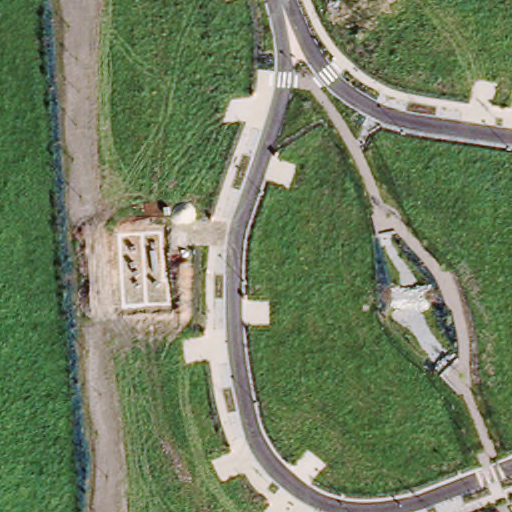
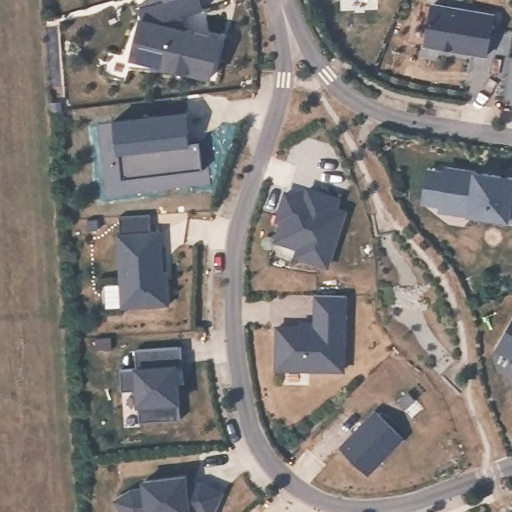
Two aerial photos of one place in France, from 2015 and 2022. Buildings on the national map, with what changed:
new [(143,16),(140,6),(155,2),(154,0),(202,0),(204,6),(170,16),(169,22),(222,36),(212,75),(131,54),(141,16),(143,16)]
new [(432,2),(480,10),(479,17),(493,20),(487,52),(425,42),(432,2)]
new [(185,110),(187,131),(182,132),(183,141),(199,139),(202,167),(121,177),(115,118),(185,110)]
new [(421,197),(426,165),(443,168),(444,164),(512,174),(512,216),(437,205),(438,200),(421,197)]
new [(303,197),(306,186),(343,197),(340,208),(347,210),(328,266),(294,257),(296,247),(272,241),(278,223),(275,221),(285,191),(303,197)]
new [(152,231),(161,230),(165,272),(168,271),(170,305),(121,310),(121,307),(106,308),(104,285),(120,283),(117,232),(121,232),(120,219),(149,216),(152,231)]
new [(346,295),(345,372),(276,371),(275,327),(300,326),(299,322),(313,321),(313,296),(346,295)]
new [(495,351),(512,318),(512,361),(495,351)]
new [(140,352),(186,348),(188,368),(189,385),(182,386),(185,421),(145,423),(142,391),(126,392),(125,371),(140,370),(140,352)]
new [(375,410),(402,437),(368,472),(341,444),(375,410)]
new [(215,512),(121,512),(113,500),(141,485),(141,481),(188,474),(189,480),(223,489),(215,512)]

